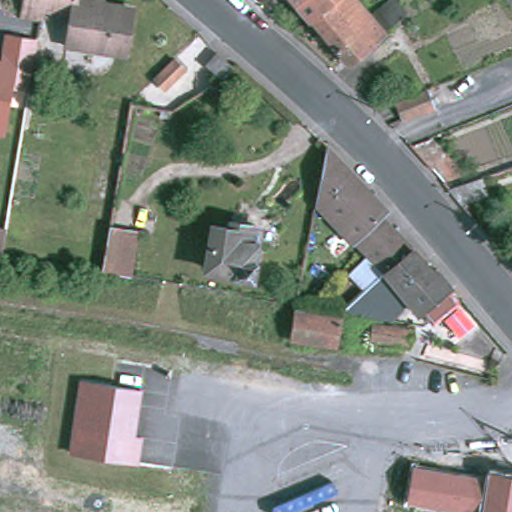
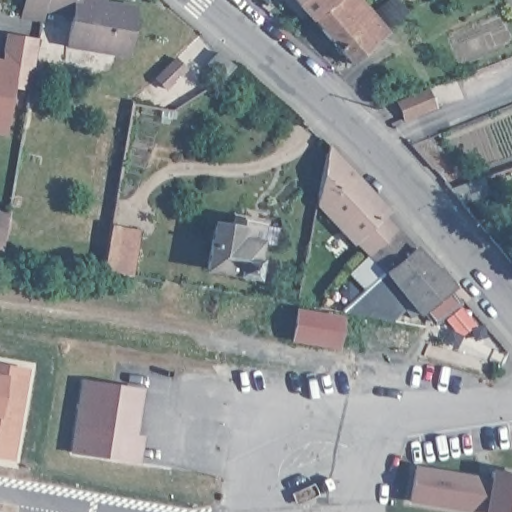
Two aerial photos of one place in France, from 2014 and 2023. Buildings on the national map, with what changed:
unchanged [(132,50),(73,40),(78,10),(51,6),(49,16),(47,16),(28,13),(30,0),(115,0),(139,4),(132,50)]
unchanged [(295,0),(334,0),(331,3),(332,4),(312,20),(310,18),(295,0)]
unchanged [(358,0),(372,16),(391,0),(396,0),(406,11),(385,31),(387,34),(351,65),(312,20),(332,4),(331,3),(334,0),(358,0)]
unchanged [(30,90),(12,88),(5,134),(0,133),(0,59),(4,34),(37,39),(30,90)]
unchanged [(223,78),(207,65),(217,53),(233,66),(223,78)]
unchanged [(397,101),(427,89),(434,106),(405,119),(397,101)]
unchanged [(393,228),(393,229),(366,251),(357,241),(354,243),(317,204),(327,147),(352,173),(348,176),(367,197),(371,194),(387,211),(381,217),(393,228)]
unchanged [(462,204),(449,189),(482,177),(488,195),(462,204)]
unchanged [(262,263),(259,279),(242,276),(242,274),(212,269),(220,226),(236,228),(237,222),(253,225),(266,227),(265,232),(260,263),(262,263)]
unchanged [(102,272),(110,228),(138,233),(131,277),(102,272)]
unchanged [(393,229),(396,230),(435,270),(437,269),(452,288),(448,291),(458,303),(434,323),(425,311),(420,314),(410,303),(392,321),(342,313),(386,272),(366,251),(393,229)]
unchanged [(297,311),(341,319),(337,347),(292,340),(297,311)]
unchanged [(370,339),(373,324),(410,330),(408,345),(370,339)]
new [(10,462),(0,460),(0,365),(27,370),(10,462)]
unchanged [(142,389),(137,435),(145,435),(140,462),(67,453),(79,378),(142,389)]
unchanged [(410,500),(415,469),(490,482),(492,472),(512,475),(512,512),(482,512),(410,500)]

